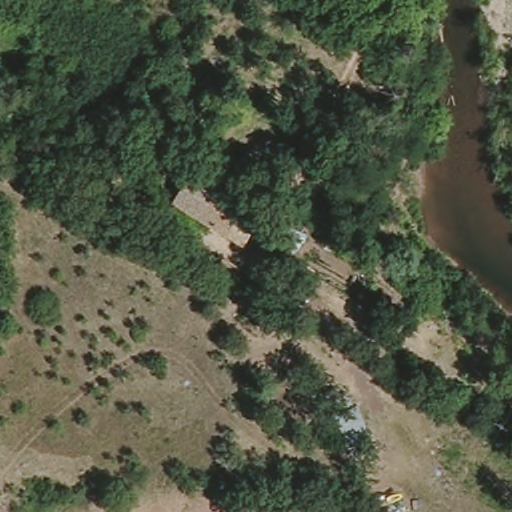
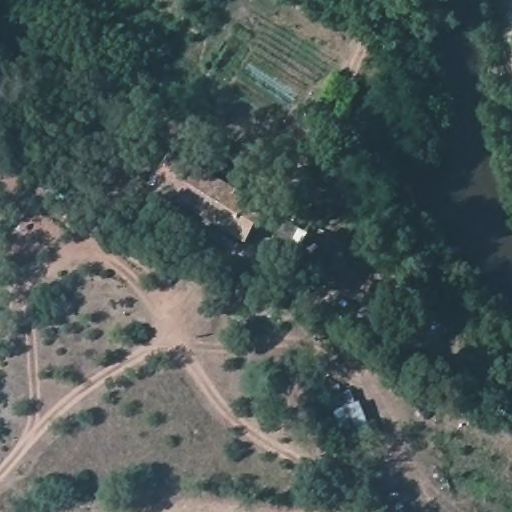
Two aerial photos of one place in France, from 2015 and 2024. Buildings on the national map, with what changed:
unchanged [(349,0),(364,0),(360,7),(349,0)]
unchanged [(227,193),(267,217),(247,252),(178,209),(196,176),(227,193)]
unchanged [(295,250),(277,241),(285,223),(302,232),(295,250)]

